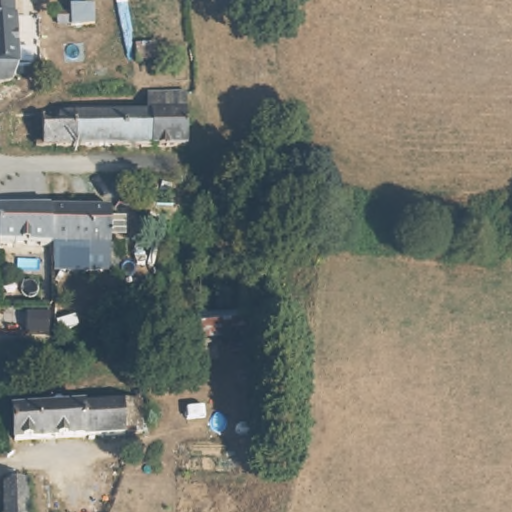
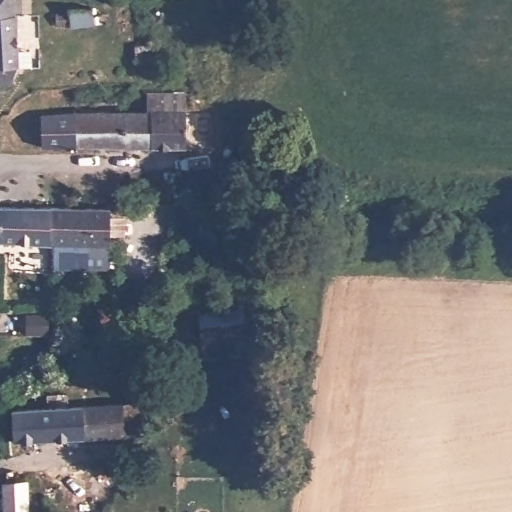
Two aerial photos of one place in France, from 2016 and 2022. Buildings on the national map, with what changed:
unchanged [(71,35),(71,31),(61,34),(58,22),(68,19),(66,15),(89,10),(94,27),(71,35)]
unchanged [(18,66),(10,81),(0,83),(0,15),(15,14),(18,66)]
unchanged [(135,63),(133,48),(151,45),(154,61),(135,63)]
unchanged [(154,141),(154,105),(147,105),(148,89),(186,88),(187,141),(154,141)]
unchanged [(136,105),(147,105),(154,105),(154,141),(98,142),(78,142),(77,106),(136,105)]
unchanged [(78,142),(46,141),(45,106),(77,106),(78,142)]
unchanged [(54,237),(0,237),(0,203),(53,204),(54,237)]
unchanged [(54,237),(53,204),(109,204),(110,236),(54,237)]
unchanged [(54,237),(110,236),(111,262),(55,261),(54,237)]
unchanged [(198,315),(243,312),(243,335),(199,337),(199,333),(198,315)]
unchanged [(3,410),(133,401),(134,431),(4,440),(3,410)]
unchanged [(4,481),(26,480),(29,512),(5,512),(4,481)]

